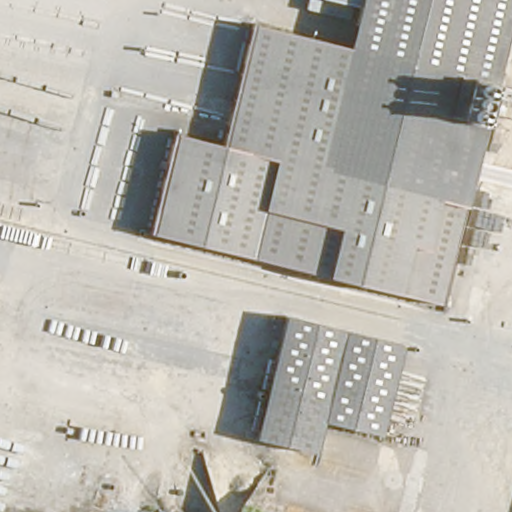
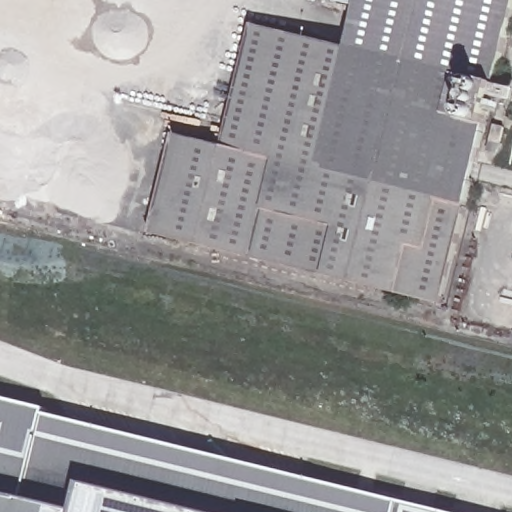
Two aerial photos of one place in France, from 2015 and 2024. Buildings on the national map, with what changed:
unchanged [(512,23),(464,202),(317,167),(346,50),(358,5),(333,0),(512,0),(512,23)]
unchanged [(317,167),(464,202),(441,310),(155,237),(177,141),(196,146),(206,101),(236,107),(253,30),(346,50),(317,167)]
demolished [(288,308),(406,342),(401,360),(327,343),(281,333),(288,308)]
demolished [(271,370),(281,333),(327,343),(401,360),(391,396),(271,370)]
demolished [(253,432),(271,370),(391,396),(381,431),(319,416),(309,447),(253,432)]
new [(46,409),(45,413),(444,512),(0,512),(0,397),(46,409)]
demolished [(271,512),(249,512),(251,506),(271,512)]

